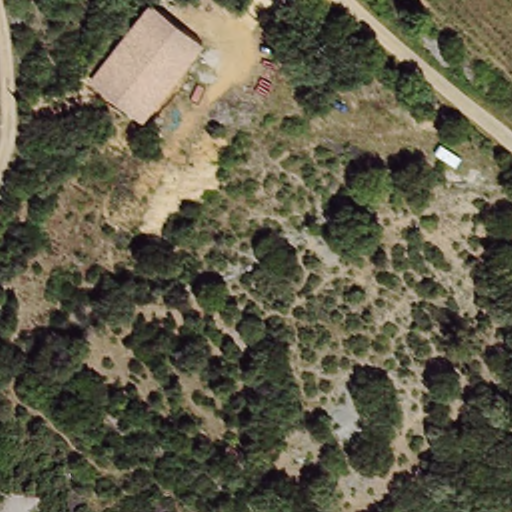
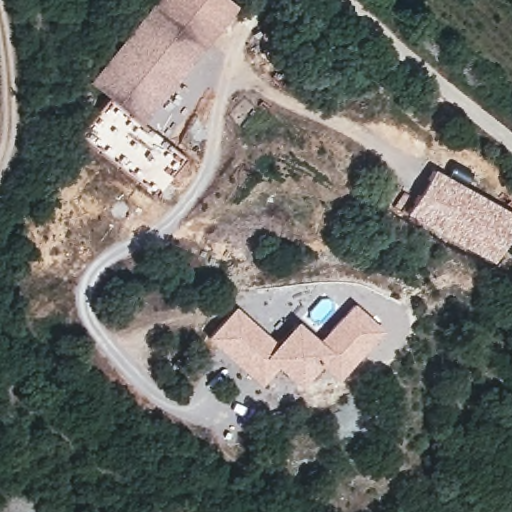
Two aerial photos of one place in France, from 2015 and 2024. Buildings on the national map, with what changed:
unchanged [(220,0),(235,10),(146,124),(89,82),(150,2),(152,0),(220,0)]
new [(512,232),(495,263),(409,213),(433,170),(512,214),(512,232)]
new [(276,343),(297,319),(319,339),(353,301),(385,331),(339,382),(321,365),(301,388),(279,367),(262,386),(206,337),(234,306),(276,343)]

